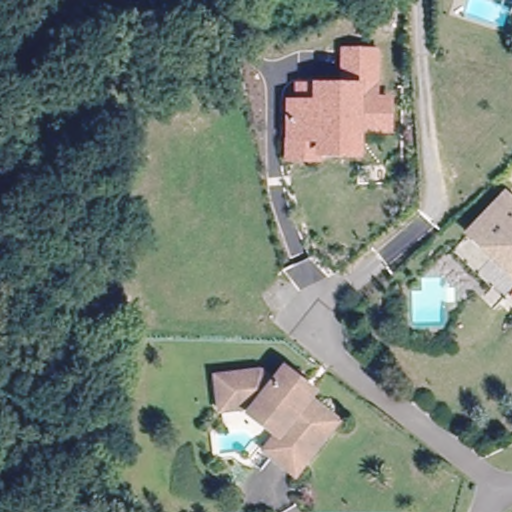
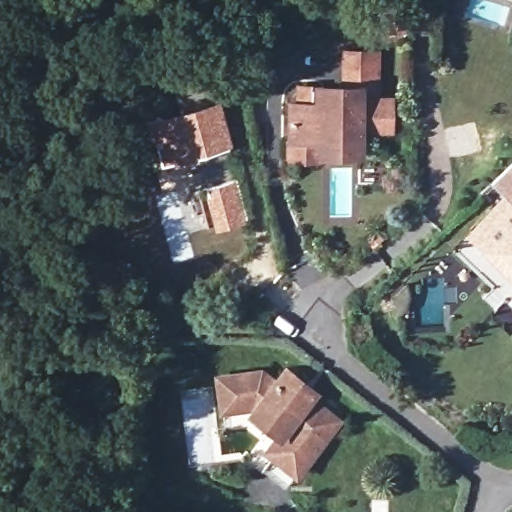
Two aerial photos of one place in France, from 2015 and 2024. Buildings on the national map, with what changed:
unchanged [(323,152),(323,162),(290,161),(290,140),(291,105),(300,105),(300,88),(343,89),(343,54),(376,54),(375,101),(391,101),(391,131),(380,131),(380,141),(361,141),(361,153),(323,152)]
new [(230,141),(225,142),(195,150),(197,156),(175,164),(173,158),(160,162),(155,144),(149,145),(143,119),(219,97),(230,141)]
new [(195,150),(225,142),(232,179),(237,177),(247,221),(214,231),(197,156),(195,150)]
new [(512,163),(512,208),(501,197),(505,194),(490,184),(512,163)]
unchanged [(486,260),(489,257),(465,235),(501,197),(512,208),(512,285),(486,260)]
unchanged [(277,436),(282,429),(254,406),(260,399),(256,396),(225,400),(221,371),(265,366),(278,377),(289,362),(309,378),(318,386),(312,393),(341,415),(306,459),(296,471),(267,447),(277,436)]

